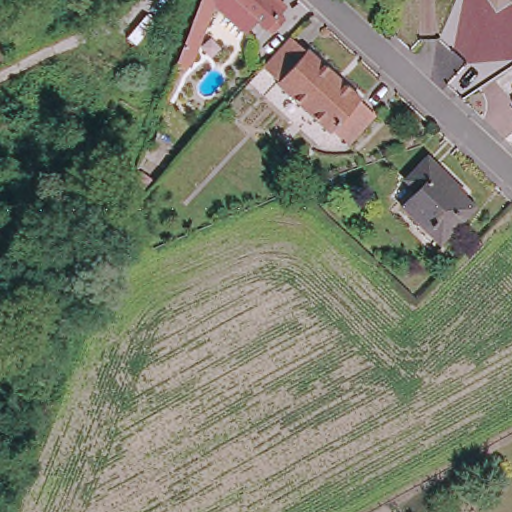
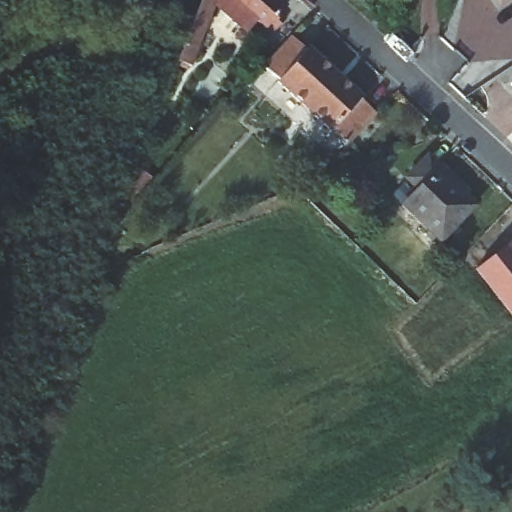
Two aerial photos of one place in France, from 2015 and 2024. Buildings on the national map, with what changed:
unchanged [(200,0),(211,0),(190,62),(178,58),(200,0)]
unchanged [(284,4),(280,7),(286,15),(271,30),(257,17),(248,26),(219,0),(280,0),(284,4)]
unchanged [(500,10),(493,0),(512,0),(512,1),(500,10)]
unchanged [(286,38),(292,32),(305,45),(307,42),(363,94),(360,99),(375,112),(347,141),(333,128),(331,130),(276,77),(278,74),(264,61),(286,38)]
unchanged [(445,163),(442,167),(478,202),(443,237),(406,201),(421,187),(407,173),(430,149),(445,163)]
new [(475,270),(505,246),(512,254),(512,315),(475,270)]

